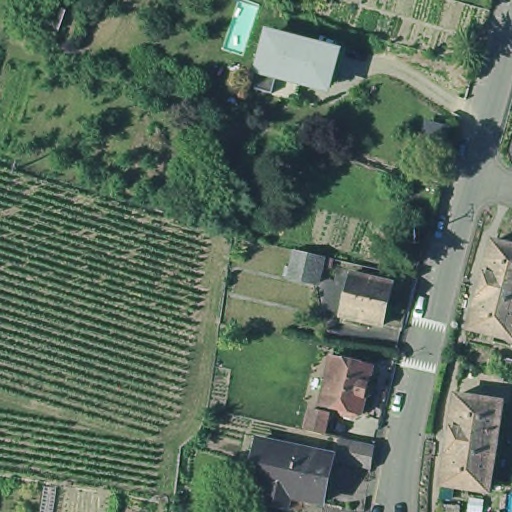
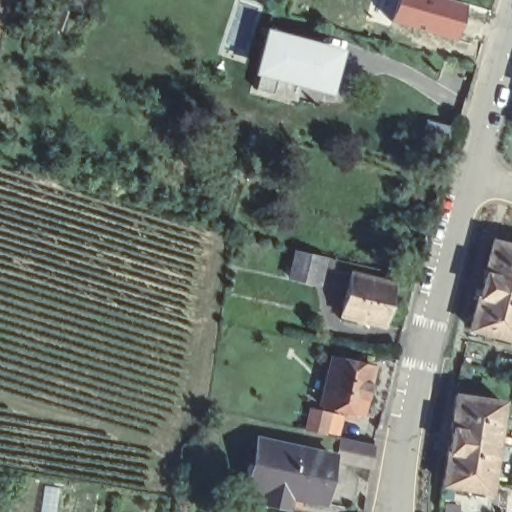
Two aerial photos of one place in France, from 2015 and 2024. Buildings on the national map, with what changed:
new [(458,0),(463,1),(452,39),(390,20),(395,0),(458,0)]
unchanged [(45,31),(55,4),(72,10),(64,37),(45,31)]
unchanged [(342,47),(329,93),(252,73),(263,26),(342,47)]
unchanged [(512,241),(512,333),(475,323),(483,292),(485,291),(490,270),(490,268),(497,237),(512,241)]
unchanged [(289,273),(292,258),(295,246),(322,253),(332,255),(331,262),(320,260),(320,265),(315,280),(289,273)]
unchanged [(345,316),(355,275),(397,285),(387,326),(345,316)]
unchanged [(335,348),(376,358),(365,406),(362,406),(361,408),(358,410),(345,407),(342,401),(323,397),(335,348)]
unchanged [(508,398),(505,419),(504,419),(497,465),(494,487),(447,480),(452,446),(453,446),(457,423),(456,423),(461,390),(508,398)]
unchanged [(310,422),(315,401),(330,404),(325,425),(310,422)]
unchanged [(288,495),(286,508),(263,503),(265,490),(247,486),(256,442),(331,458),(335,438),(374,447),(370,471),(330,462),(321,503),(288,495)]

